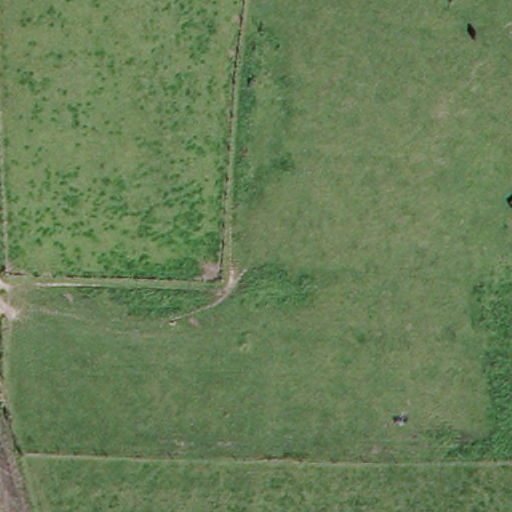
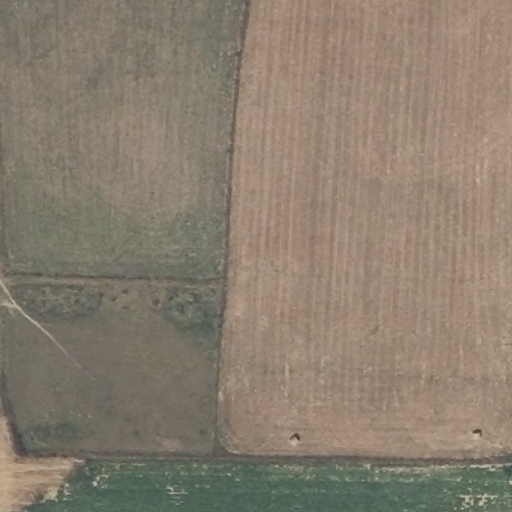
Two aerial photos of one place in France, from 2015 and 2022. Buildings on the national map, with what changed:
[]

